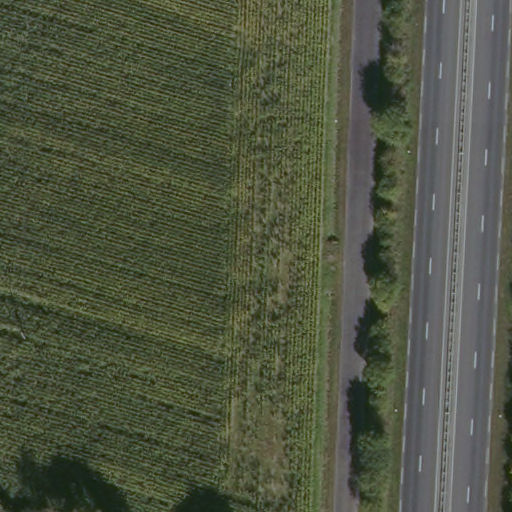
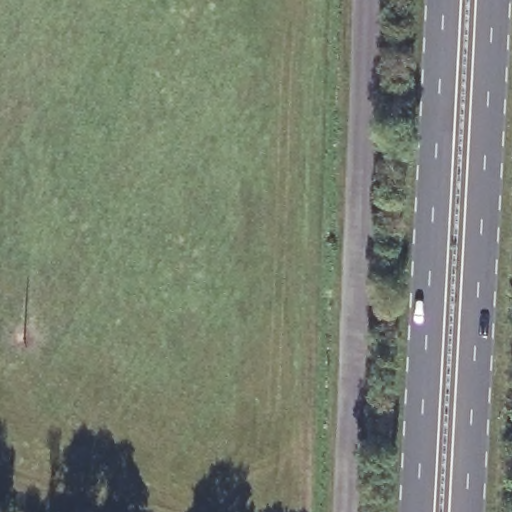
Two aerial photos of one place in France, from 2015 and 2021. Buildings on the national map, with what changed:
[]

